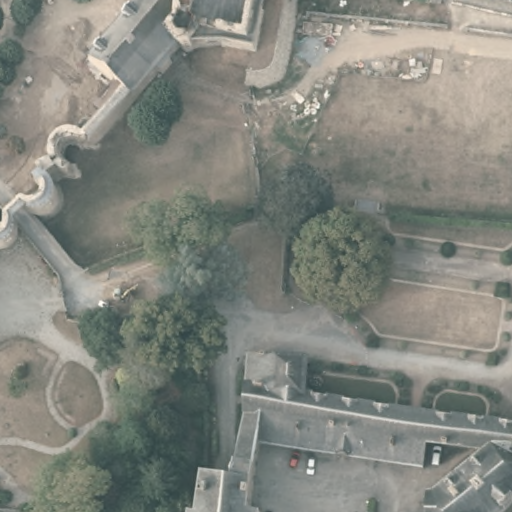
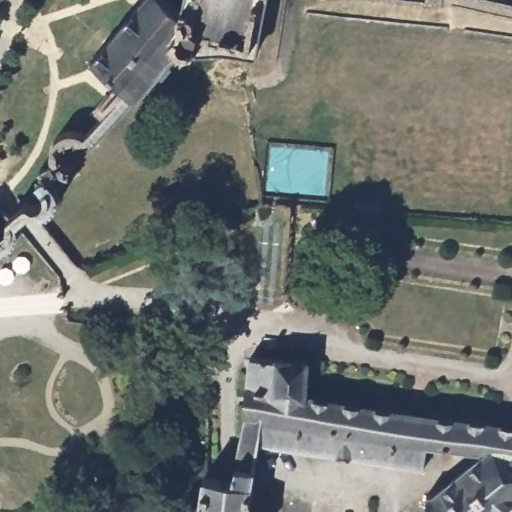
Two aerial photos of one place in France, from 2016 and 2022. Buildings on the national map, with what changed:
unchanged [(223,44),(196,45),(196,49),(187,49),(181,45),(172,57),(174,61),(165,71),(159,71),(94,139),(87,135),(76,135),(70,140),(65,146),(64,152),(65,157),(61,171),(53,175),(61,182),(65,191),(63,200),(59,207),(53,212),(46,214),(40,213),(33,212),(20,197),(2,171),(96,66),(91,59),(141,0),(268,0),(259,52),(223,44)]
unchanged [(13,236),(8,242),(0,247),(0,208),(11,217),(15,223),(16,226),(15,230),(13,236)]
unchanged [(127,346),(108,342),(111,324),(130,327),(127,346)]
unchanged [(204,472),(207,473),(235,476),(242,438),(247,412),(252,353),(308,356),(306,386),(304,418),(429,440),(426,466),(260,442),(255,482),(278,487),(276,512),(200,512),(204,472)]
unchanged [(306,386),(512,421),(512,500),(501,512),(429,512),(429,492),(436,490),(473,460),(485,448),(429,440),(304,418),(306,386)]

